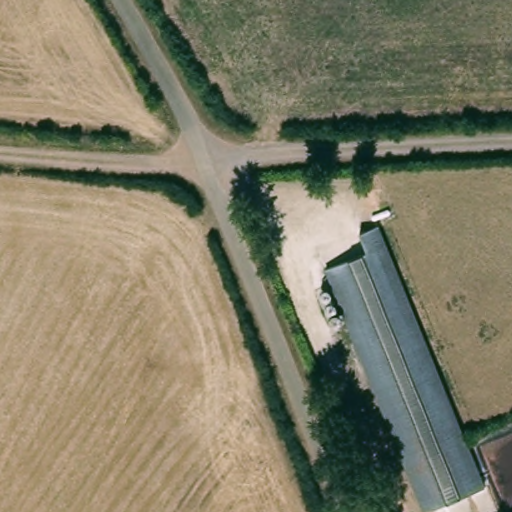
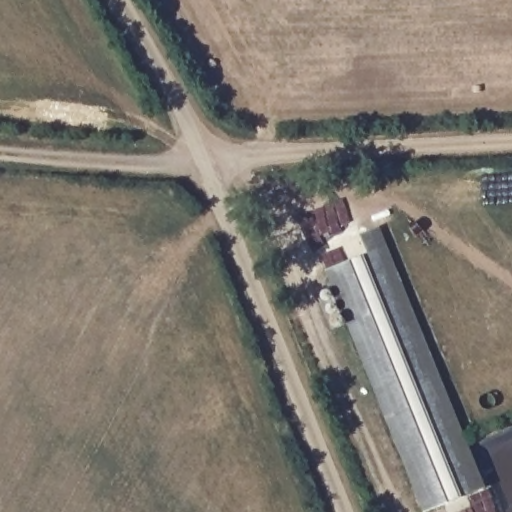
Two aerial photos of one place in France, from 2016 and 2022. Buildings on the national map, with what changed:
unchanged [(370,253),(362,234),(381,226),(485,489),(426,512),(330,269),(370,253)]

